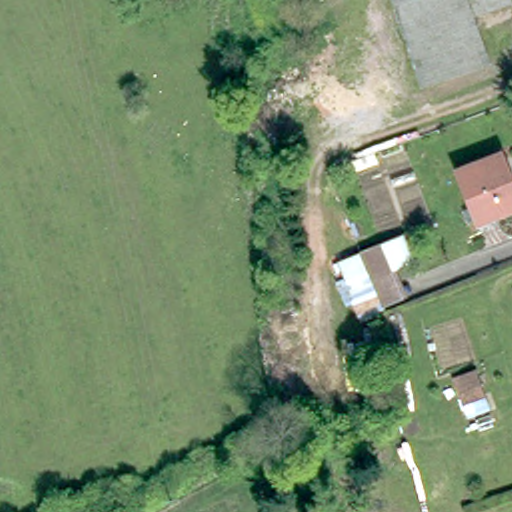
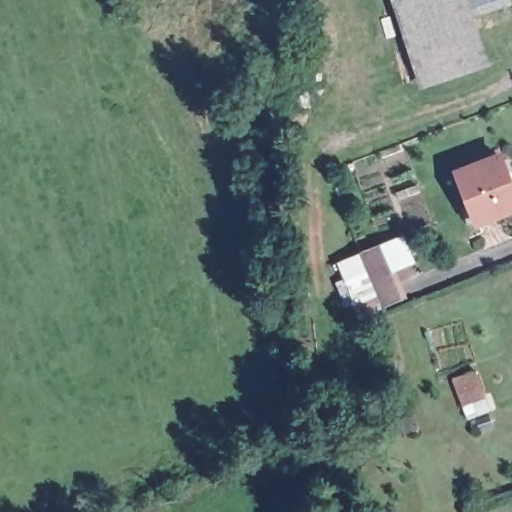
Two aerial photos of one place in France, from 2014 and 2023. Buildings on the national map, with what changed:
unchanged [(403,0),(432,0),(453,58),(430,67),(403,0)]
unchanged [(453,58),(432,0),(472,0),(488,46),(453,58)]
unchanged [(459,172),(500,157),(512,188),(512,210),(478,223),(459,172)]
unchanged [(366,307),(343,248),(365,240),(381,233),(394,265),(377,271),(388,298),(366,307)]
unchanged [(460,417),(449,380),(468,373),(482,410),(460,417)]

